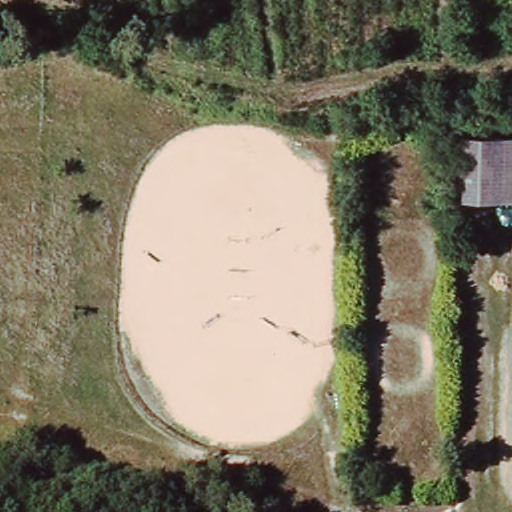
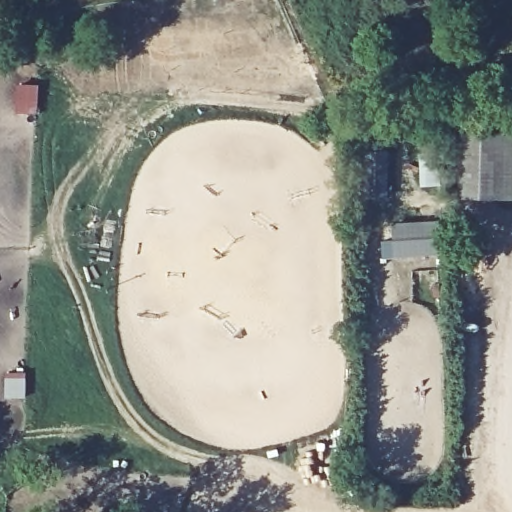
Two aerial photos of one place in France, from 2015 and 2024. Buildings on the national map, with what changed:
unchanged [(460,136),(512,136),(512,196),(459,195),(460,136)]
new [(394,257),(390,223),(436,221),(439,253),(394,257)]

